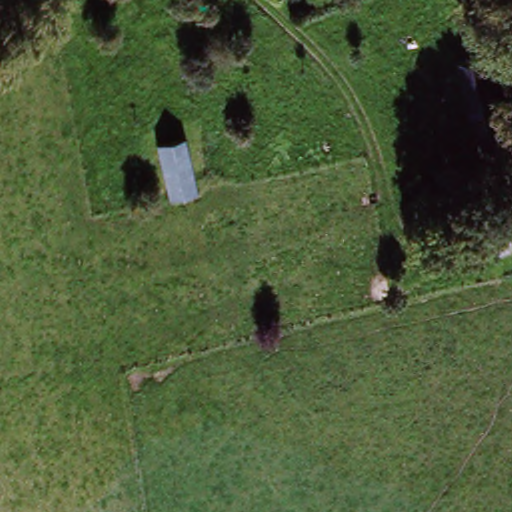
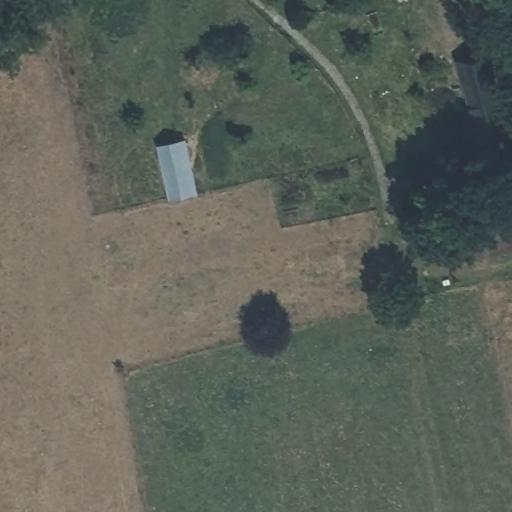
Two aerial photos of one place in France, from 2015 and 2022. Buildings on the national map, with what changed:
unchanged [(470,132),(447,54),(476,45),(489,42),(495,64),(482,67),(498,124),(470,132)]
unchanged [(498,124),(509,162),(481,170),(470,132),(498,124)]
unchanged [(158,147),(185,140),(197,193),(170,199),(158,147)]
unchanged [(512,223),(512,252),(492,257),(485,229),(512,223)]

